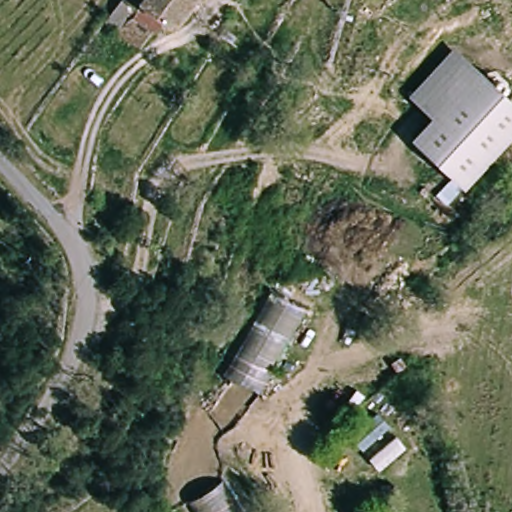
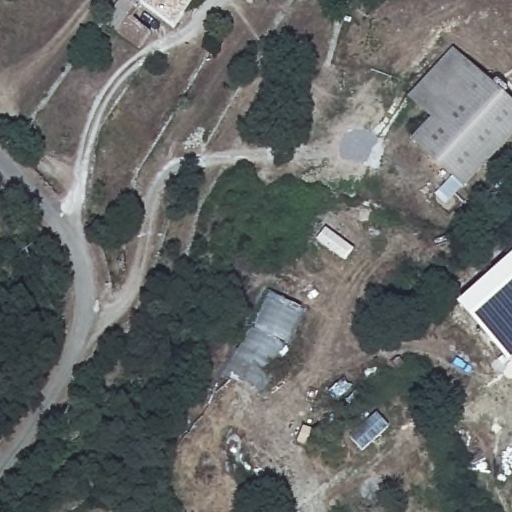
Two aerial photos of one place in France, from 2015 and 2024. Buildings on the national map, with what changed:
unchanged [(145,48),(106,24),(122,0),(194,0),(174,29),(163,22),(145,48)]
unchanged [(492,84),(496,80),(509,93),(505,97),(512,103),(512,139),(463,192),(445,207),(435,197),(452,182),(411,143),(430,120),(407,98),(452,49),(492,84)]
new [(458,305),(512,256),(512,361),(510,363),(458,305)]
unchanged [(229,375),(272,291),(309,313),(263,394),(229,375)]

